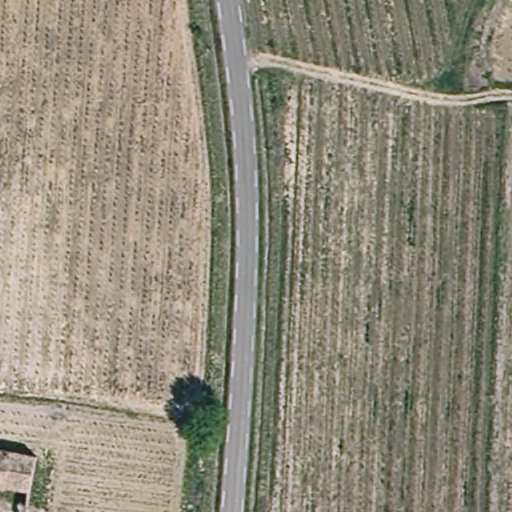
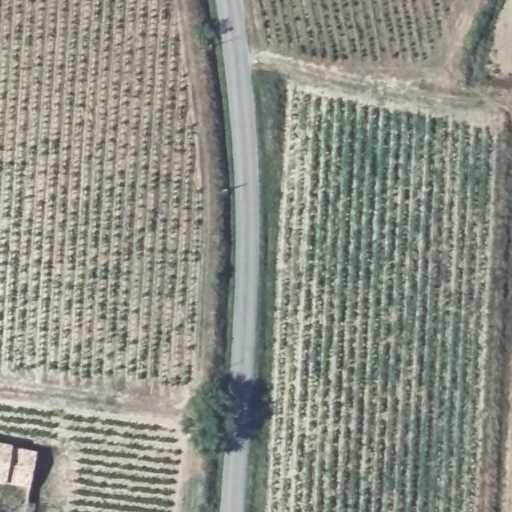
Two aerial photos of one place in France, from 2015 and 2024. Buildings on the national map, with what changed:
unchanged [(1,483),(0,483),(0,446),(8,448),(33,453),(26,487),(1,483)]

